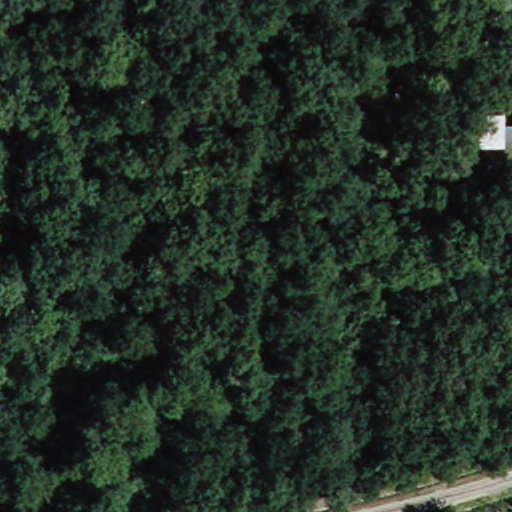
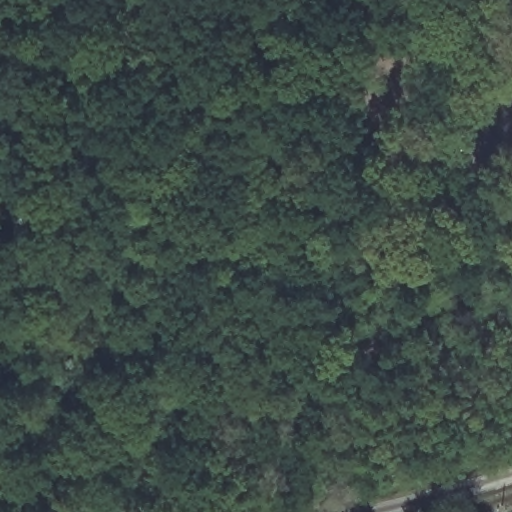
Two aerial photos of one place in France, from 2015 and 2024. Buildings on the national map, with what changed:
unchanged [(465,120),(512,120),(511,75),(512,75),(512,124),(512,143),(465,144),(465,120)]

